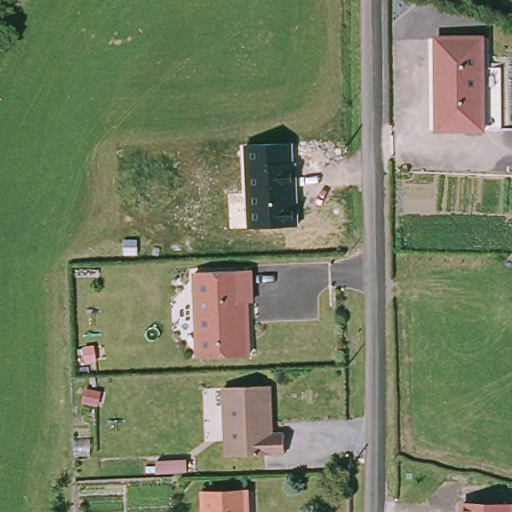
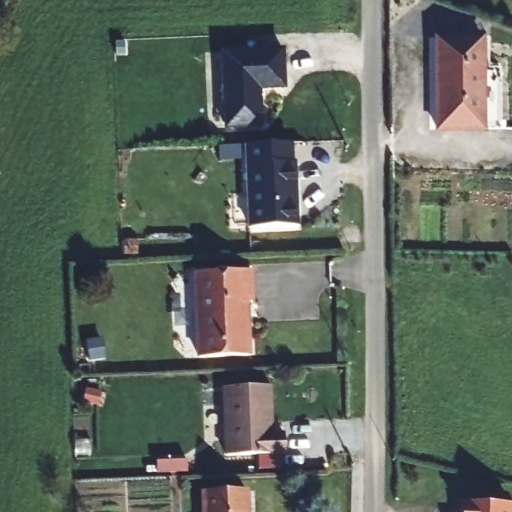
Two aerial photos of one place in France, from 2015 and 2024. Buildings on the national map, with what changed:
unchanged [(433,37),(485,36),(485,129),(435,133),(433,37)]
new [(280,47),(284,84),(260,87),(260,94),(263,94),(266,124),(228,127),(220,52),(280,47)]
unchanged [(300,226),(248,229),(244,145),(293,142),(295,163),(297,162),(300,226)]
unchanged [(250,296),(245,296),(250,352),(201,358),(191,271),(246,263),(250,296)]
unchanged [(226,385),(266,381),(270,431),(280,430),(282,450),(232,455),(226,385)]
unchanged [(165,461),(188,458),(190,470),(166,472),(165,461)]
unchanged [(205,495),(245,491),(247,512),(207,512),(205,495)]
unchanged [(459,500),(512,503),(512,512),(459,512),(459,500)]

